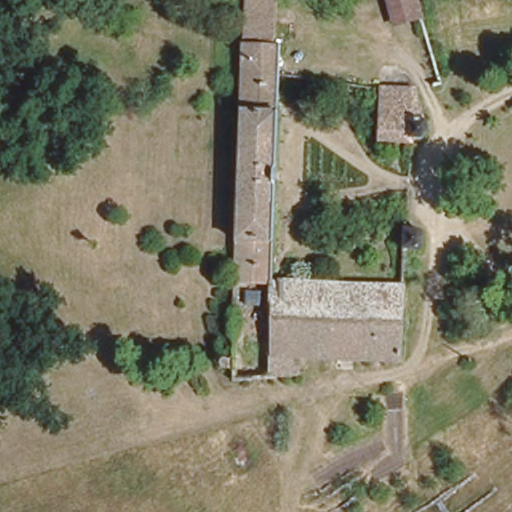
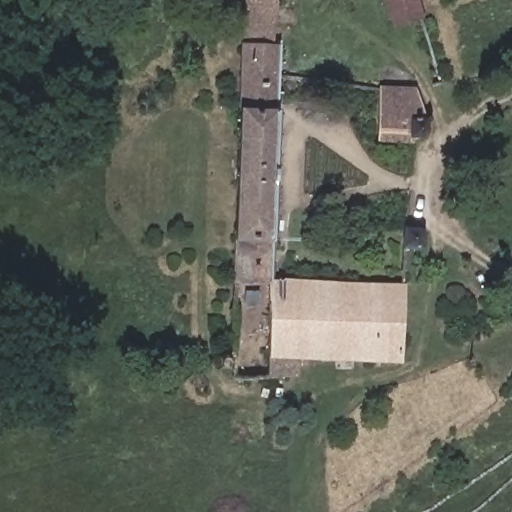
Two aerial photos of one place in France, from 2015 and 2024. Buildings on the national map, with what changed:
unchanged [(278,45),(270,280),(402,286),(398,361),(307,357),(306,365),(298,365),(298,375),(267,376),(268,356),(268,315),(234,315),(242,45),(244,22),(246,0),(276,0),(272,45),(278,45)]
unchanged [(392,26),(385,0),(417,0),(422,18),(392,26)]
unchanged [(413,88),(427,125),(427,127),(427,128),(427,129),(426,130),(426,131),(425,132),(424,133),(423,134),(422,135),(421,136),(420,136),(418,137),(417,137),(416,137),(415,137),(414,137),(412,137),(411,144),(379,142),(381,89),(413,88)]
unchanged [(415,229),(416,229),(417,230),(418,230),(420,231),(421,232),(422,234),(422,235),(422,236),(423,238),(423,240),(422,241),(422,242),(422,244),(421,245),(420,246),(418,247),(417,247),(416,248),(414,249),(412,249),(403,248),(404,228),(415,229)]

